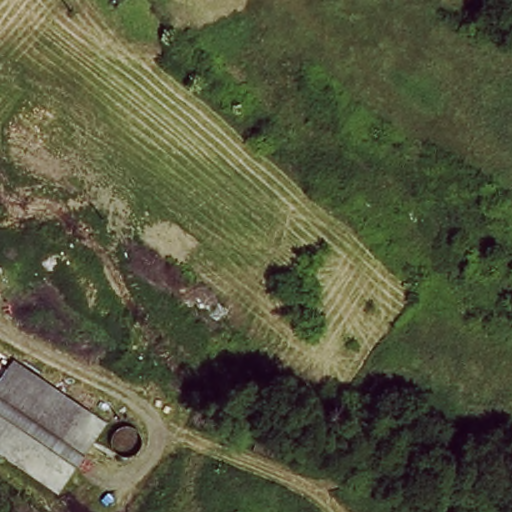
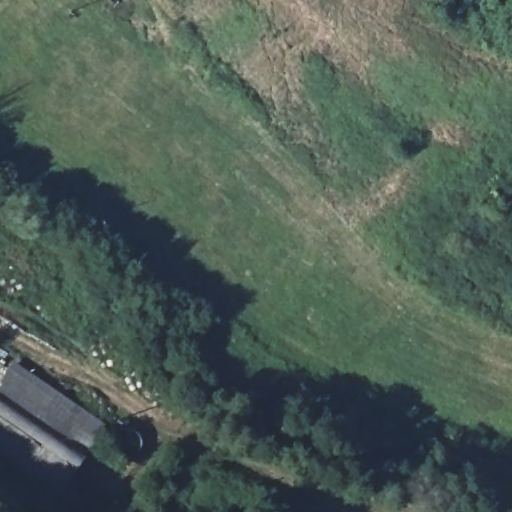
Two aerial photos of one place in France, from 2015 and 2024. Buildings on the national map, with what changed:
unchanged [(62,496),(0,448),(0,351),(113,424),(62,496)]

